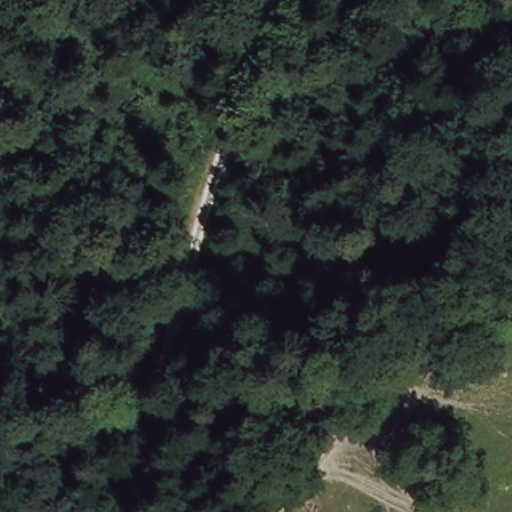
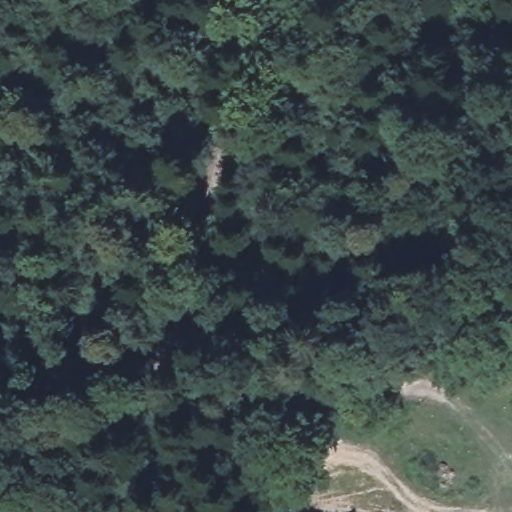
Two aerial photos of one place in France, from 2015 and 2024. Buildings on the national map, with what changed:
[]

